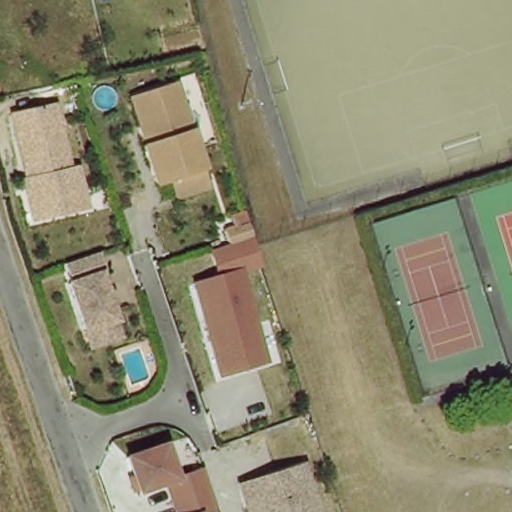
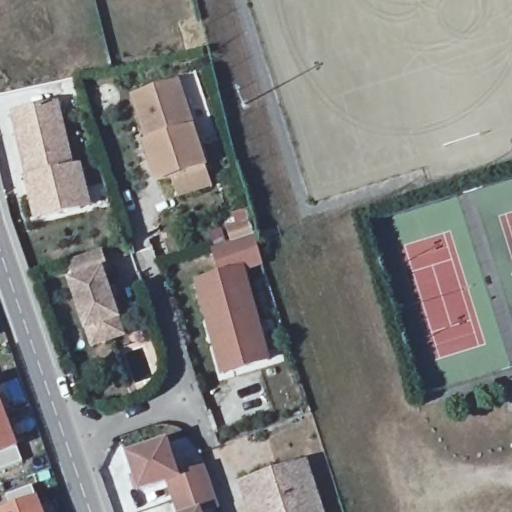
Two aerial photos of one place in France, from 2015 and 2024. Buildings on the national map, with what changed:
unchanged [(173,195),(167,179),(155,183),(142,145),(145,145),(130,97),(140,94),(175,82),(202,167),(208,184),(173,195)]
unchanged [(28,179),(30,178),(15,113),(58,103),(73,167),(81,165),(86,186),(90,205),(80,208),(46,216),(37,219),(28,179)]
unchanged [(251,221),(256,235),(232,244),(227,229),(251,221)]
unchanged [(210,325),(198,283),(222,276),(215,250),(256,236),(257,240),(260,249),(265,265),(245,270),(270,361),(233,372),(223,375),(210,325)]
unchanged [(118,306),(112,308),(120,329),(88,340),(72,292),(75,291),(68,272),(103,260),(110,280),(104,282),(110,300),(115,298),(118,306)]
new [(0,473),(0,392),(20,450),(25,464),(0,473)]
unchanged [(168,443),(180,477),(207,468),(213,487),(177,500),(170,481),(142,491),(130,456),(168,443)]
unchanged [(247,511),(238,484),(265,475),(301,463),(317,512),(247,512),(247,511)]
new [(10,509),(8,495),(32,486),(40,500),(44,512),(0,512),(10,509)]
unchanged [(177,500),(213,487),(220,507),(207,512),(181,512),(177,500)]

